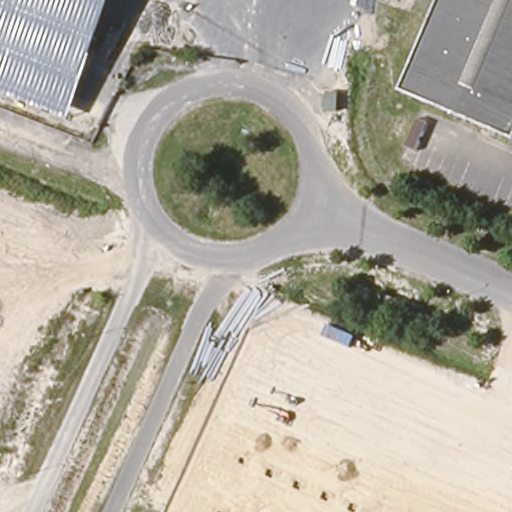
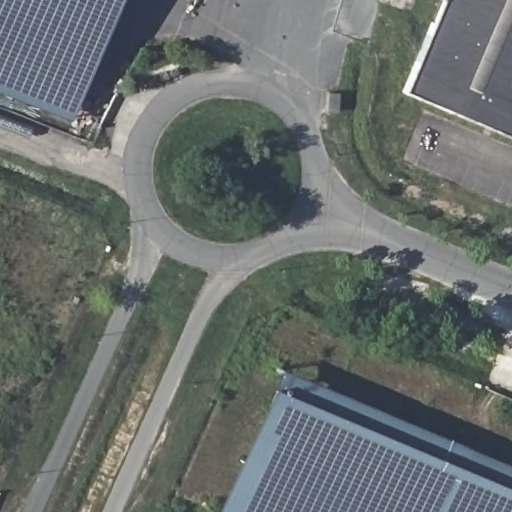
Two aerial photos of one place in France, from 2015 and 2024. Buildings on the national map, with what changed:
unchanged [(71,118),(0,90),(0,0),(117,0),(71,118)]
unchanged [(404,97),(443,0),(512,0),(512,142),(404,97)]
new [(280,367),(512,465),(512,512),(218,512),(272,386),(280,367)]

